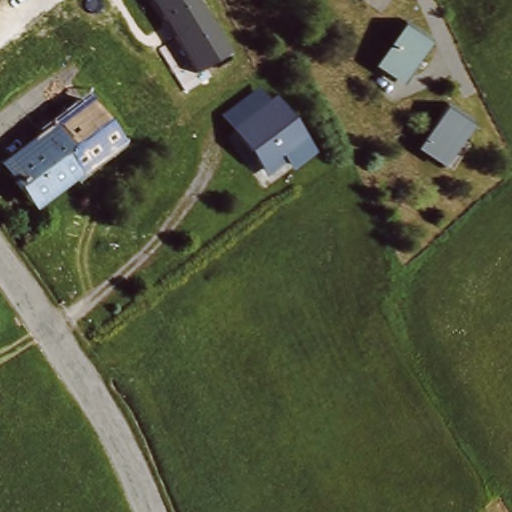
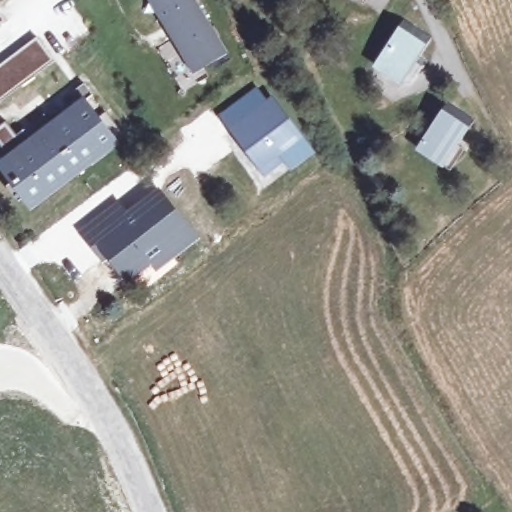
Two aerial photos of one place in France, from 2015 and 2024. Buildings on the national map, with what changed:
unchanged [(227,52),(191,73),(147,0),(195,0),(227,52)]
new [(0,13),(7,22),(0,26),(0,13)]
unchanged [(403,74),(384,62),(407,26),(426,38),(403,74)]
new [(0,66),(37,38),(55,61),(0,102),(0,66)]
unchanged [(263,159),(261,160),(226,112),(257,89),(267,102),(273,97),(310,147),(292,161),(287,154),(269,167),(263,159)]
unchanged [(115,141),(30,205),(13,183),(19,179),(6,162),(85,102),(115,141)]
unchanged [(469,116),(446,153),(427,140),(450,104),(469,116)]
new [(117,201),(126,212),(159,186),(202,237),(157,271),(152,265),(126,284),(77,232),(117,201)]

